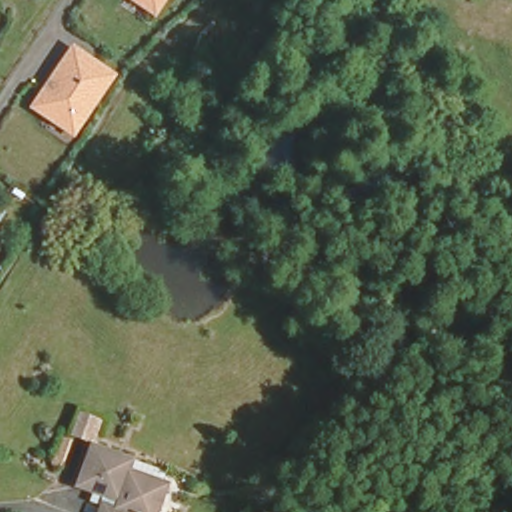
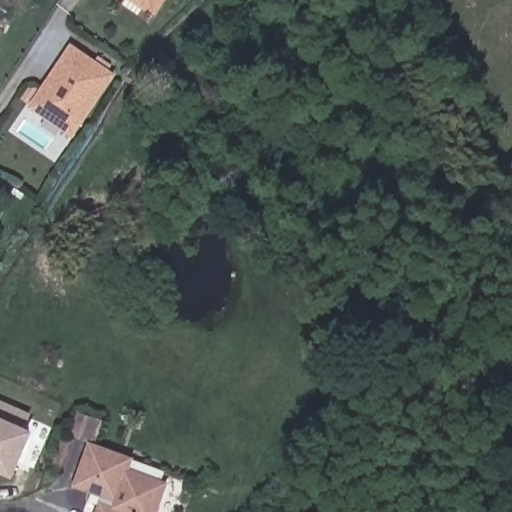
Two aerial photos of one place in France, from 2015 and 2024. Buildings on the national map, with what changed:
unchanged [(127,0),(167,0),(155,19),(127,0)]
unchanged [(72,139),(26,108),(70,44),(116,74),(72,139)]
new [(0,223),(0,213),(5,216),(0,223)]
new [(30,410),(24,424),(32,428),(14,471),(0,465),(0,402),(2,398),(30,410)]
unchanged [(100,493),(73,483),(86,447),(87,445),(82,443),(84,439),(70,434),(78,412),(104,422),(94,448),(125,459),(121,470),(159,484),(149,512),(93,512),(100,493)]

